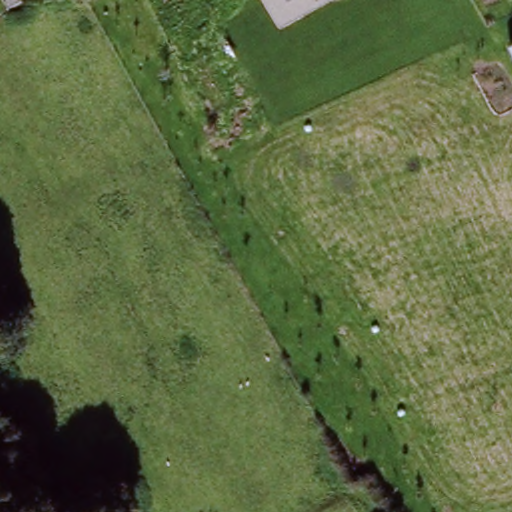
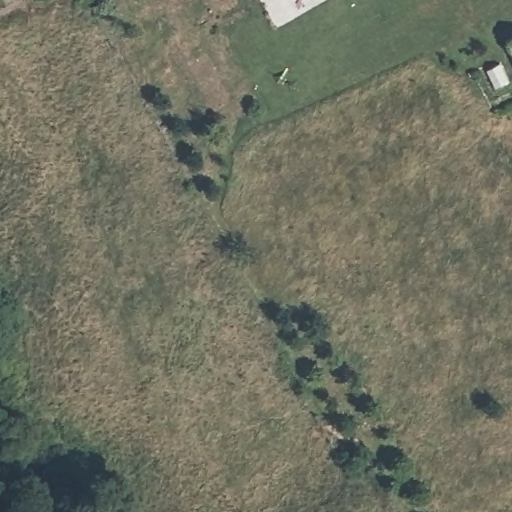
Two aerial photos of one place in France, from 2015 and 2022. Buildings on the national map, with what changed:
unchanged [(512,44),(512,51),(509,45),(512,44)]

